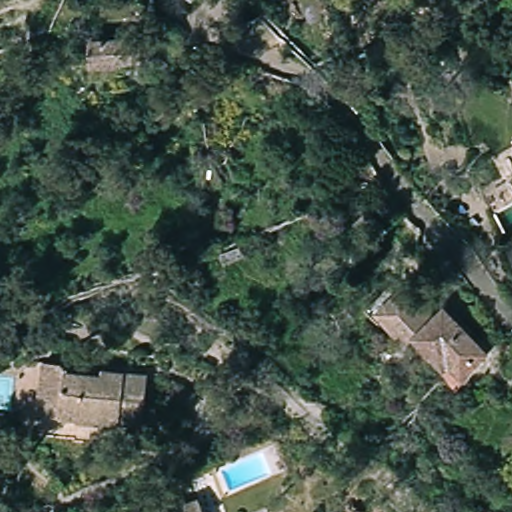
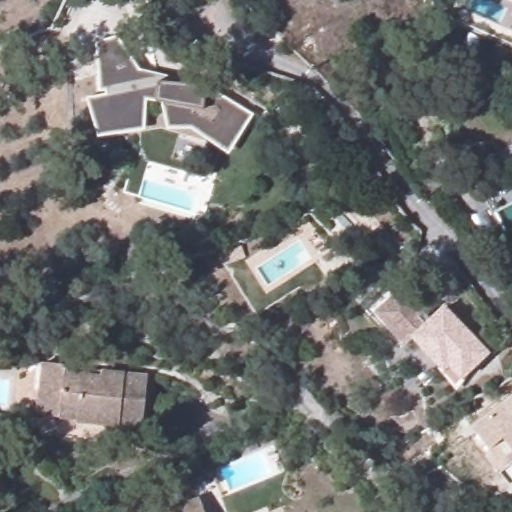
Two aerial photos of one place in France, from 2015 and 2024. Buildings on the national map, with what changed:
new [(118,36),(139,71),(181,82),(187,83),(188,80),(205,87),(254,116),(228,156),(191,130),(167,130),(161,104),(147,100),(146,132),(99,140),(86,98),(106,95),(105,92),(99,94),(96,44),(118,36)]
demolished [(142,63),(120,64),(120,69),(93,70),(91,44),(141,42),(142,63)]
unchanged [(509,144),(512,142),(512,148),(509,144)]
unchanged [(496,227),(478,192),(502,180),(512,199),(512,218),(496,227)]
unchanged [(387,239),(376,247),(359,229),(369,220),(387,239)]
unchanged [(512,256),(512,262),(509,257),(512,256)]
unchanged [(483,353),(458,378),(447,366),(439,373),(410,342),(403,350),(374,320),(399,295),(409,305),(413,300),(431,319),(440,310),(483,353)]
unchanged [(73,423),(73,417),(36,414),(41,362),(63,364),(62,375),(98,378),(99,375),(143,378),(138,426),(117,425),(116,427),(73,423)]
new [(504,439),(491,450),(472,426),(512,394),(512,450),(504,439)]
unchanged [(196,502),(200,512),(168,512),(174,510),(196,502)]

